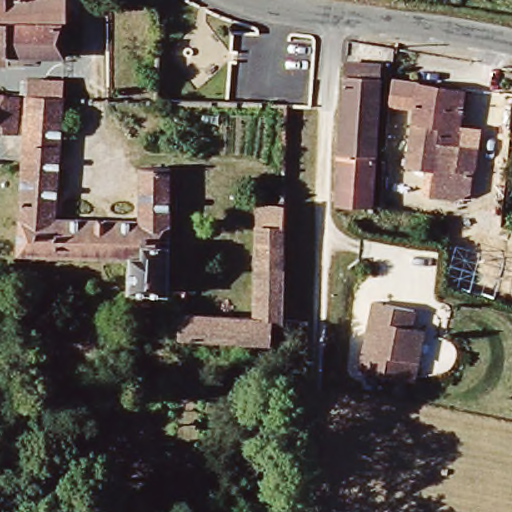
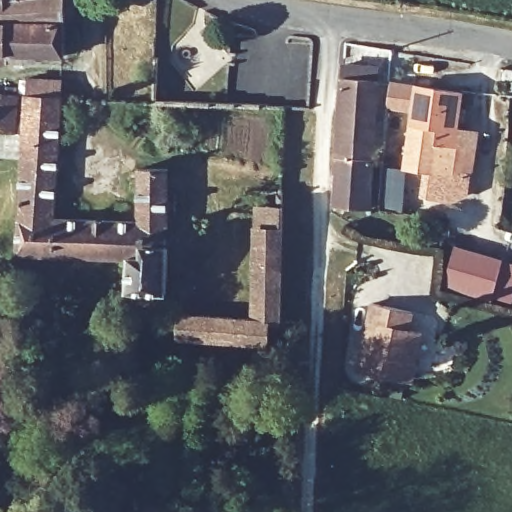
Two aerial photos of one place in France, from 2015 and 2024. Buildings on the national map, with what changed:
unchanged [(71,10),(70,19),(0,19),(0,0),(71,0),(71,10)]
unchanged [(70,50),(14,50),(14,60),(3,60),(3,50),(0,50),(0,19),(70,19),(70,50)]
unchanged [(347,59),(379,61),(378,71),(368,200),(336,200),(336,195),(346,69),(347,59)]
unchanged [(143,219),(143,166),(172,166),(172,189),(172,276),(188,277),(187,289),(131,287),(132,255),(19,250),(28,129),(31,92),(32,75),(67,76),(67,94),(59,216),(143,219)]
unchanged [(480,170),(477,170),(474,192),(459,197),(437,195),(440,170),(412,167),(419,109),(393,106),(395,80),(468,89),(464,126),(469,126),(467,142),(482,144),(480,170)]
unchanged [(22,128),(6,128),(0,128),(0,90),(23,91),(22,128)]
unchanged [(172,334),(174,311),(176,311),(246,315),(254,203),(278,203),(277,237),(276,285),(276,310),(275,314),(280,314),(280,317),(280,331),(265,330),(265,340),(172,334)]
unchanged [(278,203),(307,204),(307,237),(277,237),(278,203)]
new [(502,262),(512,265),(512,301),(511,305),(492,300),(445,286),(454,246),(502,259),(502,262)]
unchanged [(415,308),(411,325),(423,328),(413,380),(361,369),(374,301),(415,308)]

